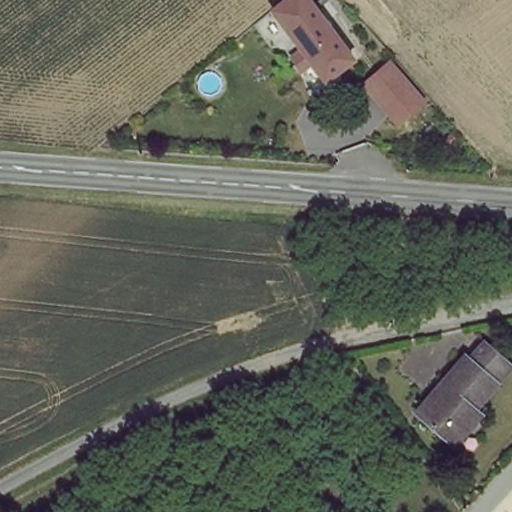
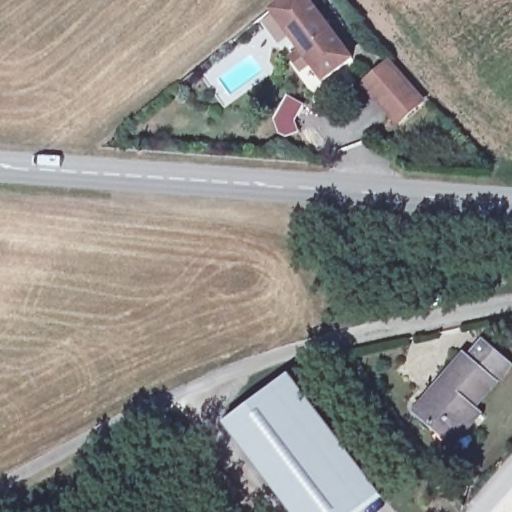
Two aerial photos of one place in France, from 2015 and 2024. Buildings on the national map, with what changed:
unchanged [(354,64),(323,85),(275,13),(276,12),(290,0),(310,0),(354,64)]
unchanged [(385,58),(418,98),(393,119),(360,79),(385,58)]
unchanged [(408,413),(463,356),(469,361),(488,340),(512,363),(512,365),(472,408),(481,416),(463,435),(447,451),(435,440),(408,413)]
new [(377,490),(349,512),(290,512),(218,420),(282,370),(377,490)]

